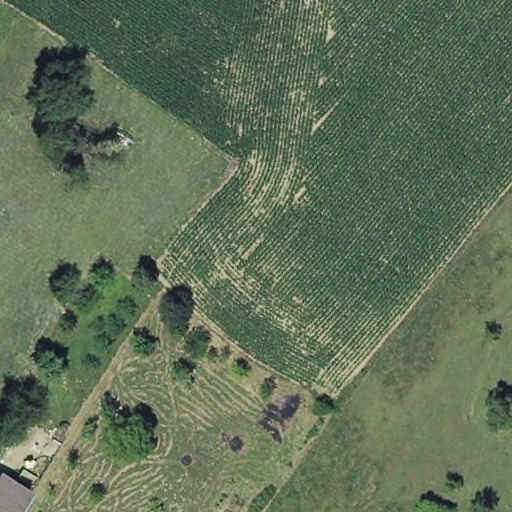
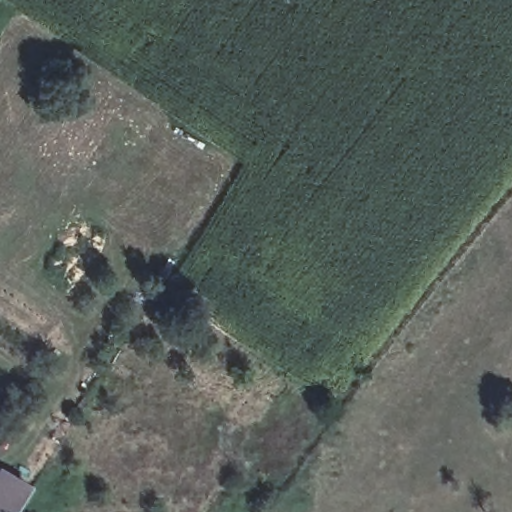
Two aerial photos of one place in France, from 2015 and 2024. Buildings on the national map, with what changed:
unchanged [(12,512),(0,512),(0,468),(28,488),(12,512)]

